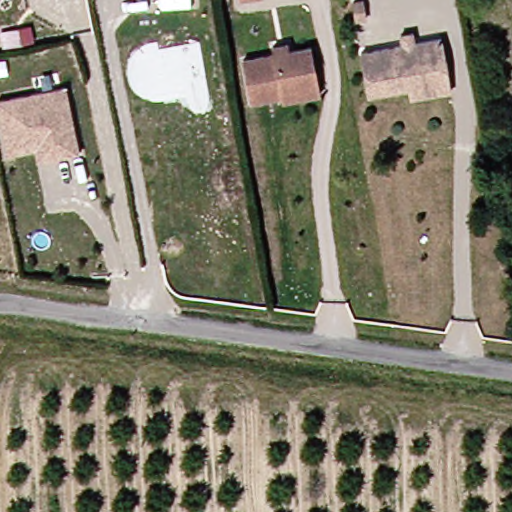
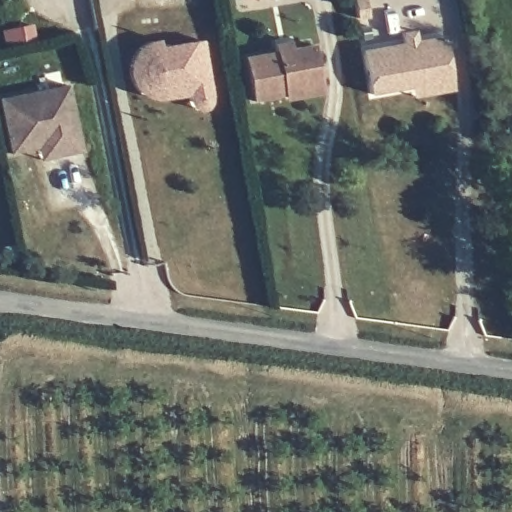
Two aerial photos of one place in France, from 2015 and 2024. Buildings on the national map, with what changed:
unchanged [(241,1),(241,0),(248,0),(241,1)]
unchanged [(365,1),(370,19),(358,21),(354,4),(365,1)]
new [(210,100),(208,105),(205,110),(199,111),(192,108),(187,95),(155,100),(146,97),(140,94),(134,87),(130,80),(129,73),(129,66),(131,60),(134,53),(141,47),(147,43),(153,41),(158,40),(159,49),(201,40),(210,100)]
unchanged [(276,104),(276,98),(240,105),(235,57),(269,51),(267,45),(282,42),(283,48),(304,44),(312,85),(315,97),(276,104)]
unchanged [(402,102),(401,93),(361,100),(353,57),(433,44),(441,86),(443,96),(402,102)]
unchanged [(9,153),(0,113),(0,99),(37,91),(33,76),(58,71),(61,85),(66,85),(80,150),(63,154),(39,160),(36,147),(9,153)]

